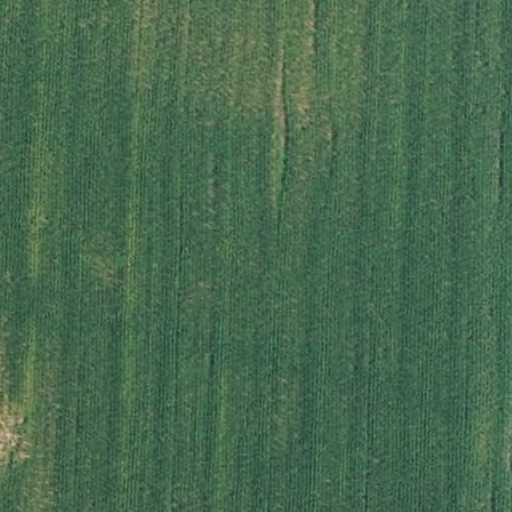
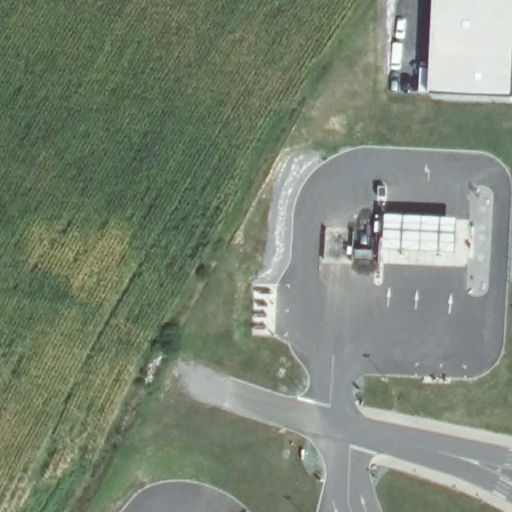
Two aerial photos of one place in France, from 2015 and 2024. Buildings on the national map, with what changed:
new [(435,0),(512,0),(512,97),(430,93),(435,0)]
new [(459,219),(458,254),(386,250),(387,214),(459,219)]

